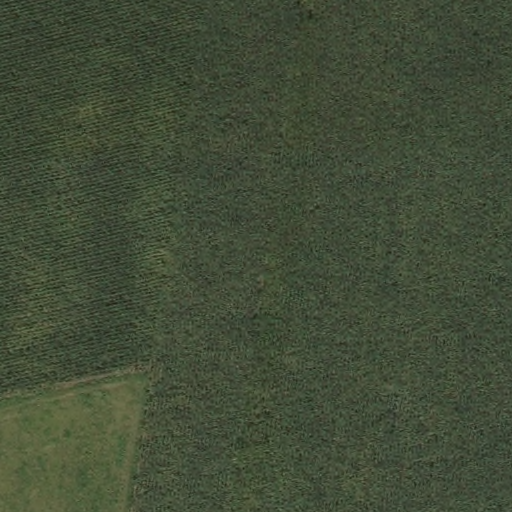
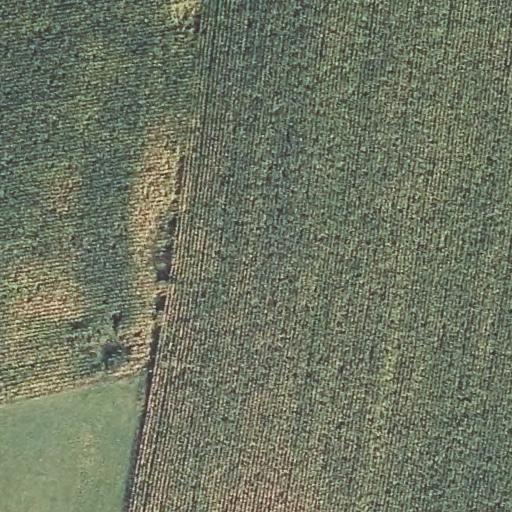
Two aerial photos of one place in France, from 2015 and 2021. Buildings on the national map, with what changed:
[]

